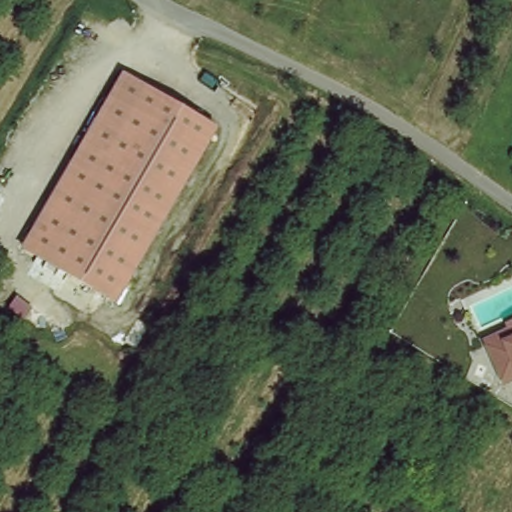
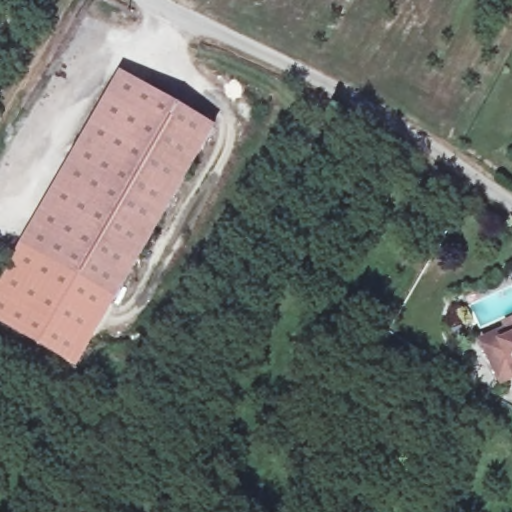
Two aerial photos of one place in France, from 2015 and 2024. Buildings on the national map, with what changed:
unchanged [(215,121),(111,300),(16,245),(122,69),(215,121)]
new [(111,300),(78,368),(0,325),(0,277),(16,245),(111,300)]
unchanged [(495,377),(474,329),(512,314),(512,374),(511,371),(495,377)]

